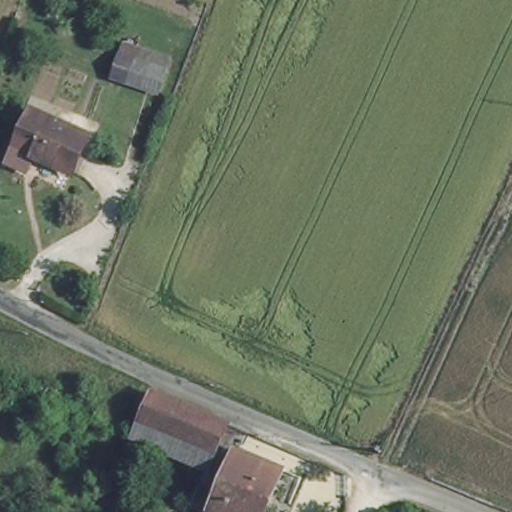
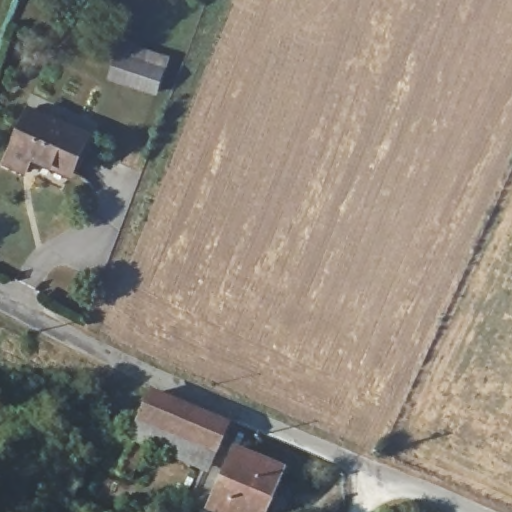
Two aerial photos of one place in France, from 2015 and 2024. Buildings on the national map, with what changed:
unchanged [(117,39),(170,58),(160,95),(110,77),(117,39)]
unchanged [(75,174),(15,147),(34,108),(92,134),(75,174)]
unchanged [(145,414),(154,389),(230,422),(220,447),(145,414)]
unchanged [(220,447),(210,469),(152,444),(136,437),(145,414),(220,447)]
unchanged [(267,512),(218,512),(212,510),(237,446),(285,466),(267,512)]
unchanged [(88,472),(77,500),(77,499),(57,491),(69,463),(88,472)]

